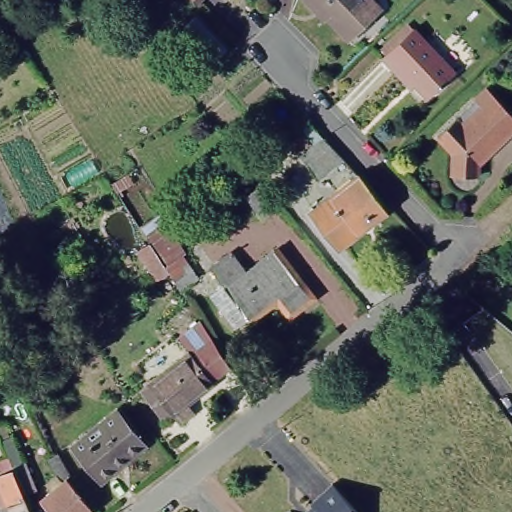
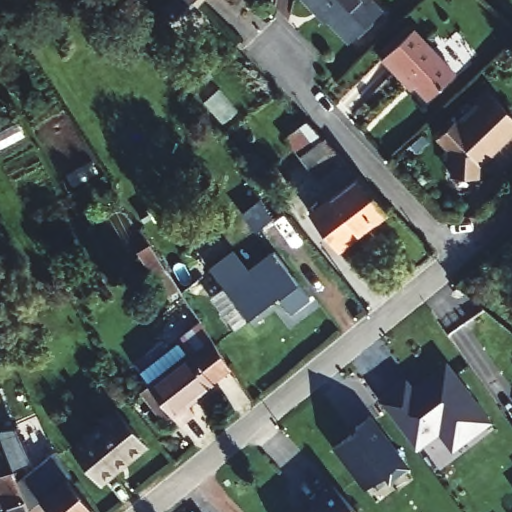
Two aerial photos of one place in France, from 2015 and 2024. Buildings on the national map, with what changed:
unchanged [(196,10),(187,0),(204,0),(196,10)]
unchanged [(379,6),(347,37),(317,7),(313,10),(304,0),(373,0),(379,6)]
unchanged [(412,27),(454,71),(428,95),(395,62),(390,67),(380,56),(412,27)]
unchanged [(487,87),(512,113),(512,130),(479,162),(475,177),(449,172),(452,150),(437,134),(455,117),(475,99),(487,87)]
unchanged [(327,186),(292,148),(275,130),(298,108),(315,127),(351,164),(327,186)]
unchanged [(352,181),(382,212),(332,249),(306,215),(352,181)]
demolished [(255,190),(272,215),(260,224),(242,199),(255,190)]
unchanged [(151,276),(133,246),(145,239),(164,268),(151,276)]
unchanged [(202,277),(179,292),(164,268),(182,258),(188,254),(202,277)]
unchanged [(247,273),(272,255),(307,299),(289,312),(276,297),(249,320),(240,326),(202,277),(210,272),(232,255),(247,273)]
unchanged [(175,343),(200,323),(230,371),(213,384),(191,357),(187,359),(175,343)]
unchanged [(187,359),(191,357),(213,384),(215,387),(192,405),(190,407),(196,415),(182,426),(151,387),(168,375),(187,359)]
new [(402,383),(409,392),(444,365),(490,425),(450,453),(436,435),(414,452),(375,400),(402,383)]
unchanged [(114,408),(142,443),(122,458),(120,458),(114,463),(88,430),(114,408)]
new [(367,417),(407,471),(385,486),(378,477),(361,490),(331,450),(367,417)]
unchanged [(5,436),(9,435),(17,458),(19,462),(22,461),(33,488),(20,494),(27,512),(6,512),(0,496),(0,469),(9,466),(0,445),(0,424),(5,436)]
unchanged [(88,430),(114,463),(95,477),(69,445),(88,430)]
unchanged [(37,479),(50,468),(41,453),(52,447),(65,467),(59,471),(87,506),(79,512),(47,512),(34,495),(44,486),(37,479)]
unchanged [(309,505),(332,484),(356,512),(307,512),(312,508),(309,505)]

